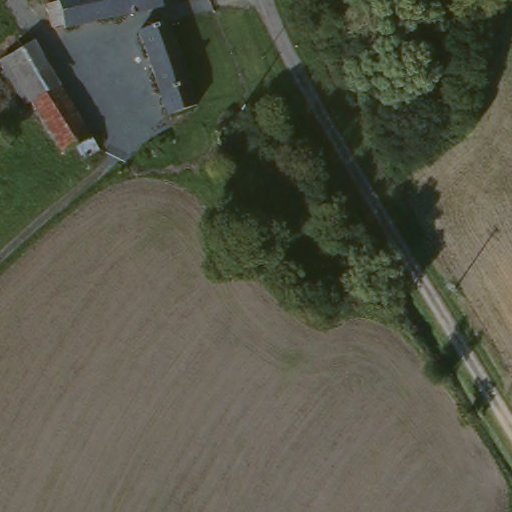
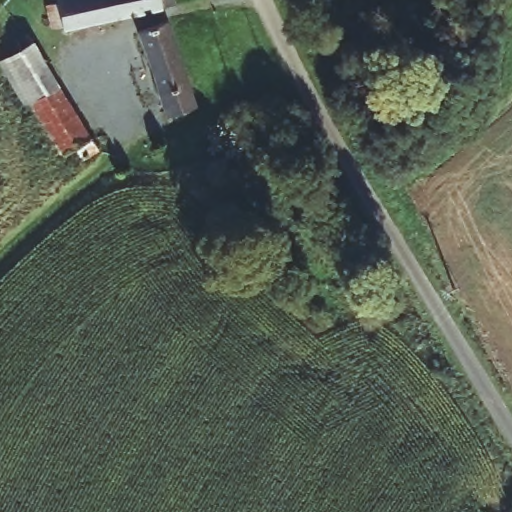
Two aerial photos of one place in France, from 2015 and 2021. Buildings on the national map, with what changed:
unchanged [(48,2),(61,0),(165,0),(166,7),(71,28),(70,22),(53,25),(48,2)]
unchanged [(164,18),(198,101),(168,111),(135,30),(164,18)]
unchanged [(86,138),(58,154),(0,55),(0,52),(26,38),(86,138)]

